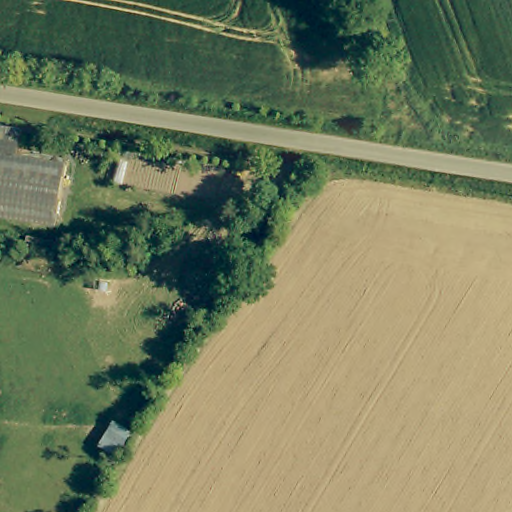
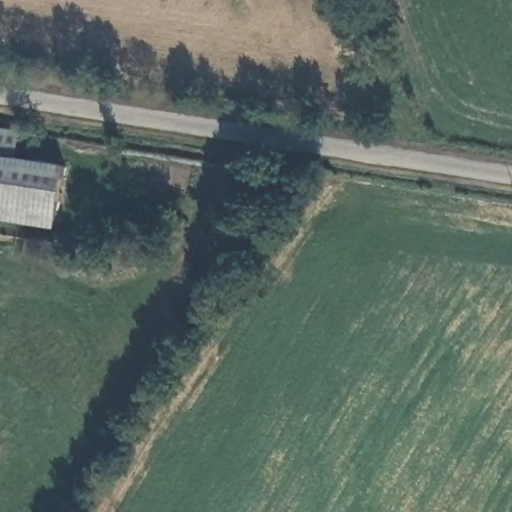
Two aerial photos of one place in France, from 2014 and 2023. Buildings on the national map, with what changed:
unchanged [(26,129),(22,155),(71,163),(63,214),(0,203),(0,125),(26,129)]

